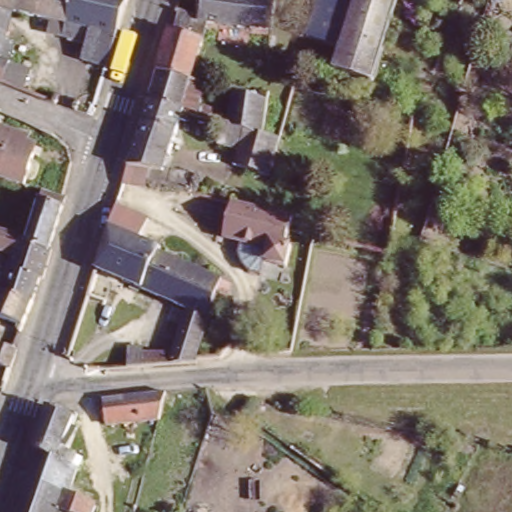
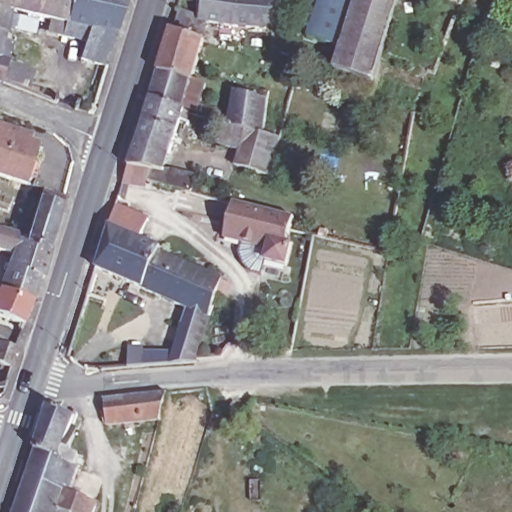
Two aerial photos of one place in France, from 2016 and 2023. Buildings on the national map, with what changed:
unchanged [(92,37),(93,30),(69,25),(71,14),(17,2),(11,32),(18,34),(6,77),(0,74),(0,0),(133,0),(119,42),(92,37)]
unchanged [(278,0),(274,22),(242,20),(209,15),(204,14),(204,12),(206,0),(278,0)]
unchanged [(344,45),(311,36),(322,0),(358,0),(349,30),(344,45)]
unchanged [(349,30),(358,0),(399,0),(384,47),(376,79),(339,70),(336,69),(344,45),(349,30)]
unchanged [(177,2),(204,12),(204,14),(209,15),(192,72),(158,63),(177,2)]
unchanged [(158,63),(192,72),(184,100),(150,90),(158,63)]
unchanged [(192,72),(204,76),(199,96),(216,101),(233,111),(238,85),(256,90),(271,94),(264,124),(228,113),(184,100),(192,72)]
unchanged [(198,167),(195,180),(171,172),(154,166),(154,164),(131,157),(150,90),(184,100),(166,162),(173,164),(174,160),(198,167)]
unchanged [(228,113),(264,124),(284,130),(273,164),(239,154),(243,140),(223,133),(228,113)]
unchanged [(32,142),(39,144),(29,182),(0,174),(0,127),(33,136),(32,142)]
unchanged [(49,184),(70,190),(72,190),(56,244),(33,237),(49,184)]
unchanged [(261,261),(258,277),(247,275),(234,249),(238,237),(228,234),(240,198),(288,215),(284,229),(282,242),(286,244),(283,265),(278,263),(261,261)]
unchanged [(171,242),(169,248),(182,254),(168,293),(102,267),(116,222),(171,242)]
unchanged [(29,236),(33,237),(56,244),(58,245),(50,272),(47,272),(38,297),(37,296),(16,291),(18,281),(27,244),(0,238),(0,223),(30,230),(29,236)]
unchanged [(148,358),(179,355),(193,302),(168,293),(182,254),(225,270),(202,362),(201,366),(134,370),(133,354),(146,352),(148,358)]
unchanged [(16,291),(37,296),(29,321),(0,315),(0,275),(18,281),(16,291)]
unchanged [(11,371),(0,368),(0,346),(17,350),(11,371)]
unchanged [(93,399),(171,393),(163,422),(112,427),(111,420),(103,420),(91,402),(93,399)]
unchanged [(35,450),(32,449),(48,406),(75,417),(70,432),(74,434),(64,462),(77,467),(69,493),(92,500),(88,512),(65,512),(53,508),(52,512),(14,512),(35,450)]

